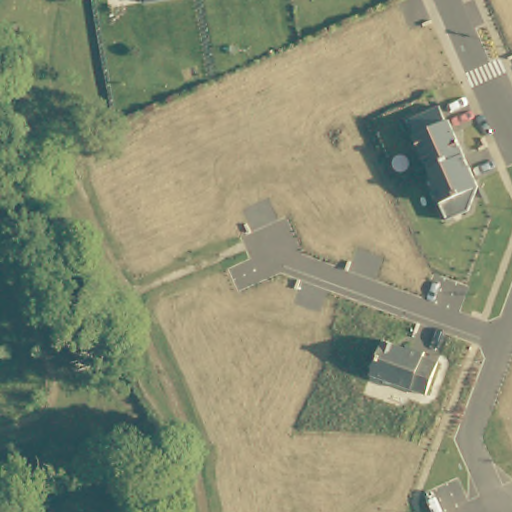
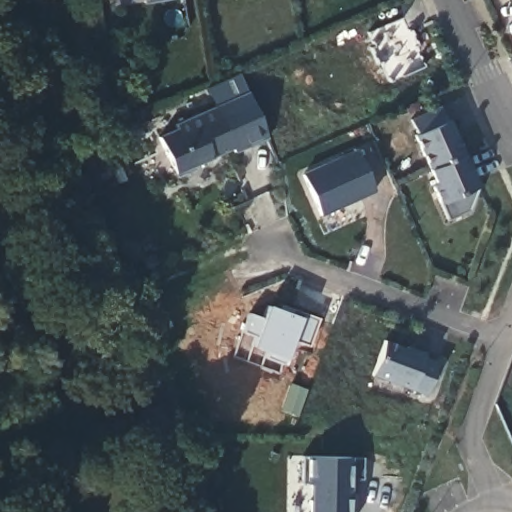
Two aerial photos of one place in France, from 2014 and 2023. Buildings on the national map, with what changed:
unchanged [(151,0),(187,0),(152,7),(151,0)]
new [(216,108),(206,88),(239,74),(247,92),(267,139),(235,153),(232,147),(216,108)]
new [(211,156),(175,172),(160,138),(176,130),(174,125),(216,108),(232,147),(211,156)]
unchanged [(454,126),(456,125),(487,195),(478,219),(457,229),(441,194),(445,193),(422,141),(425,140),(417,124),(447,111),(454,126)]
new [(303,174),(356,152),(375,192),(320,216),(303,174)]
unchanged [(430,360),(445,366),(433,399),(378,379),(391,344),(414,353),(415,350),(432,357),(430,360)]
new [(361,479),(350,479),(350,484),(355,484),(354,512),(308,512),(310,483),(300,482),(300,457),(308,457),(350,457),(362,459),(361,479)]

